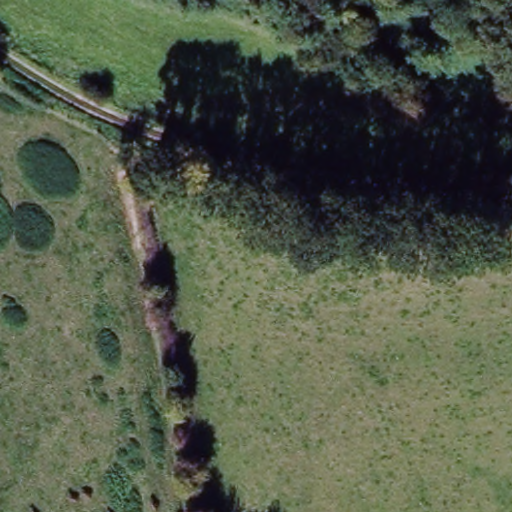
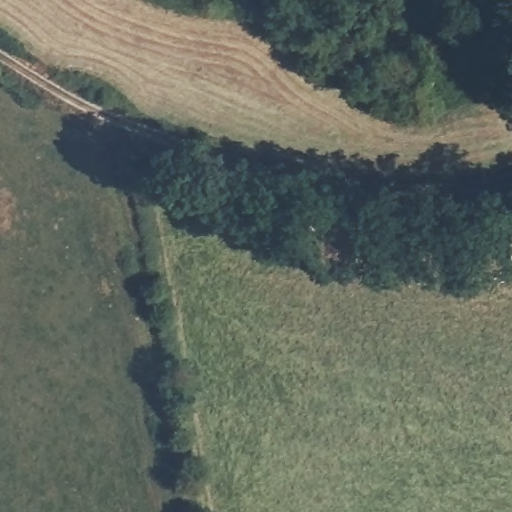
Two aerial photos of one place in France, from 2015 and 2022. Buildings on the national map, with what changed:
[]

